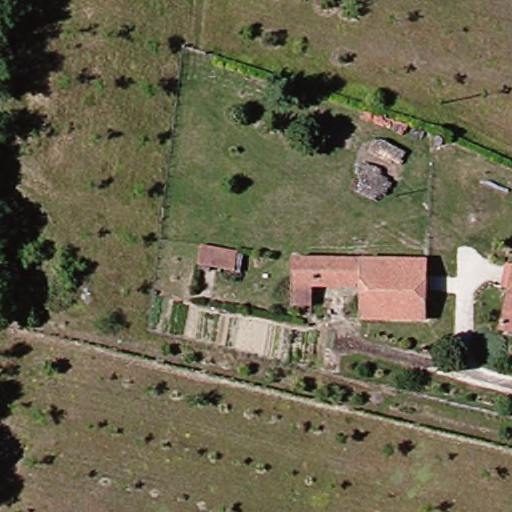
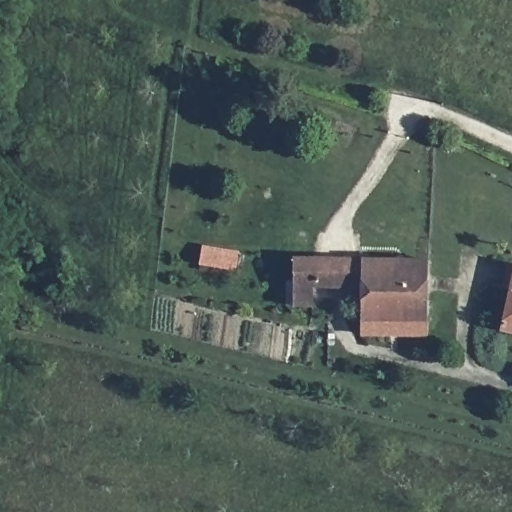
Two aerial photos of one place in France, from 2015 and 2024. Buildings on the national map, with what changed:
unchanged [(207,247),(241,254),(238,271),(201,264),(207,247)]
unchanged [(435,260),(437,319),(374,321),(371,287),(329,286),(328,304),(310,302),(308,259),(435,260)]
unchanged [(508,330),(512,315),(512,331),(508,330)]

